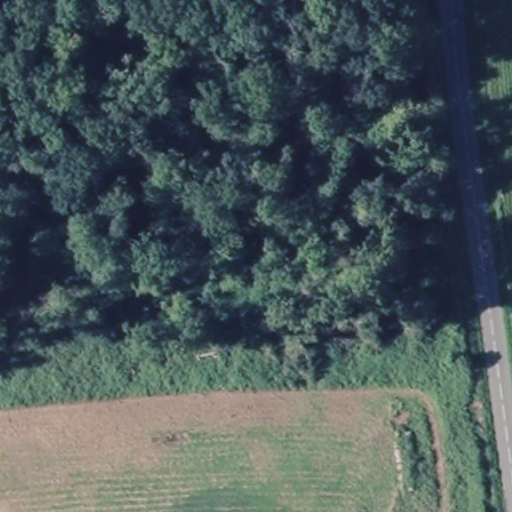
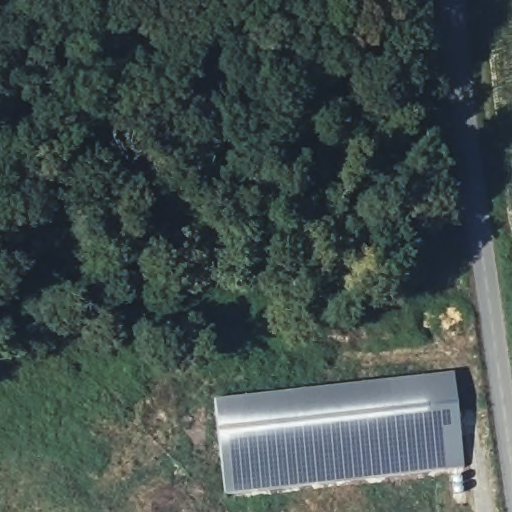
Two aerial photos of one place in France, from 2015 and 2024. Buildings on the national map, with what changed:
new [(214,400),(452,373),(464,468),(224,496),(214,400)]

